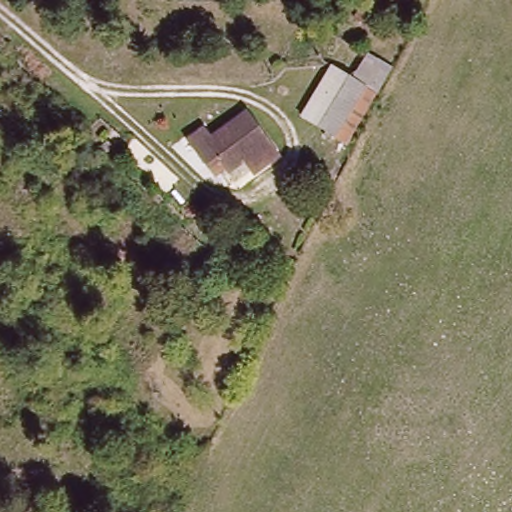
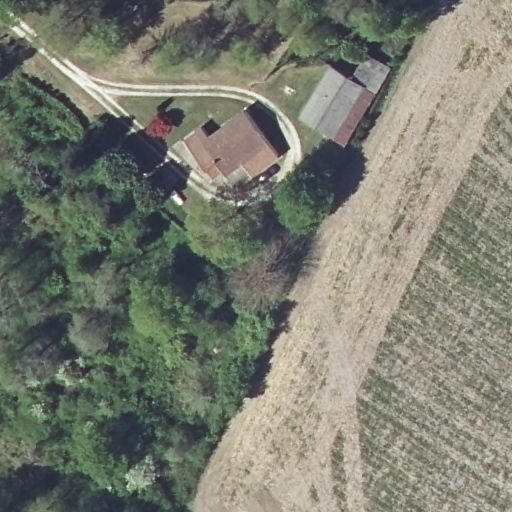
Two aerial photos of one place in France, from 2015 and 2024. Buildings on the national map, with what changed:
unchanged [(329,62),(348,73),(366,49),(391,64),(344,144),(301,115),(329,62)]
unchanged [(216,174),(196,149),(215,134),(221,143),(254,120),(278,152),(238,181),(235,178),(224,185),(216,174)]

